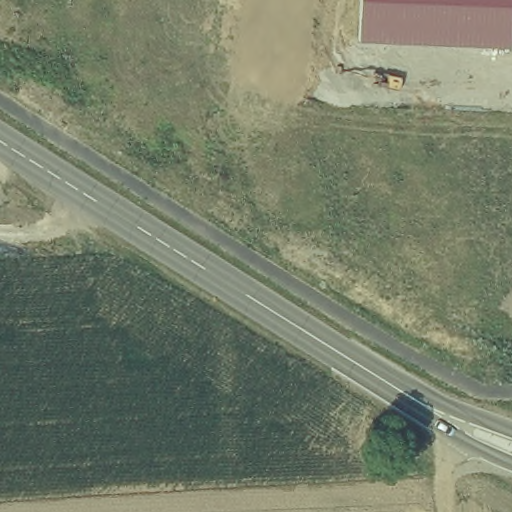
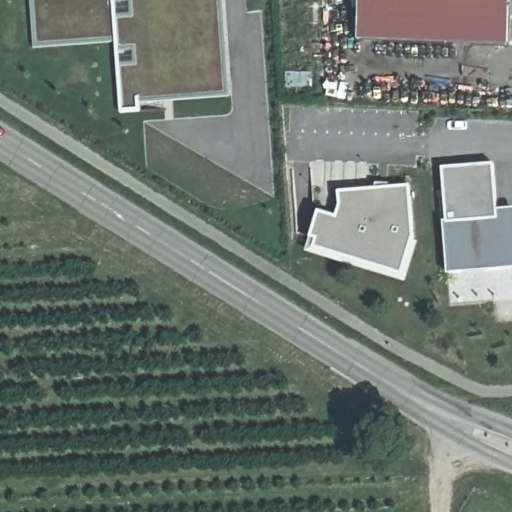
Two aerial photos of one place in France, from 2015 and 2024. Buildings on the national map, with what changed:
new [(140,101),(141,112),(119,112),(113,41),(33,46),(30,0),(223,0),(229,95),(140,101)]
unchanged [(509,46),(357,39),(360,0),(512,0),(509,46)]
new [(443,221),(446,221),(442,168),(494,164),(498,209),(512,208),(512,269),(447,273),(443,221)]
new [(403,276),(312,249),(314,240),(309,238),(318,210),(336,217),(339,204),(338,192),(411,185),(415,237),(403,276)]

